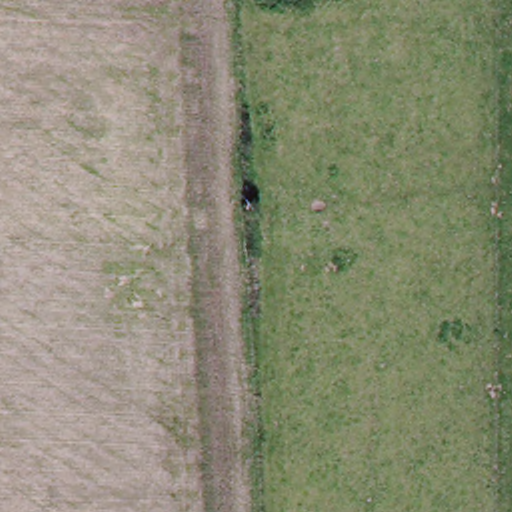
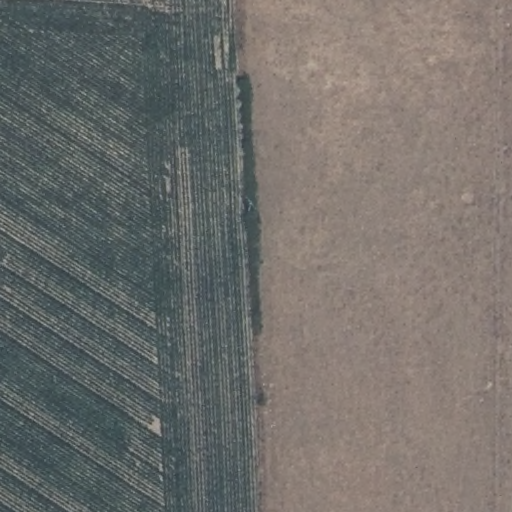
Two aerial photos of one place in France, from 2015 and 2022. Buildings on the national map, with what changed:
[]

